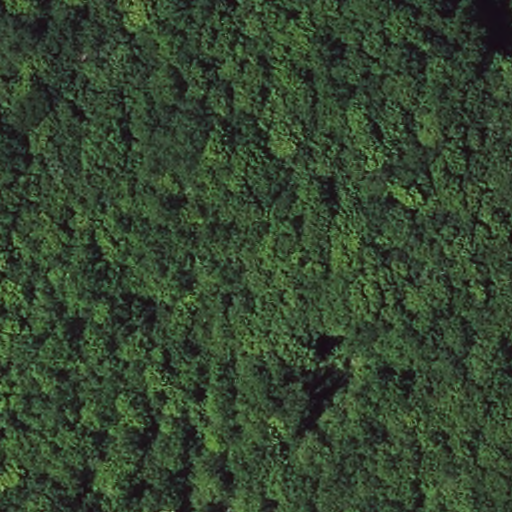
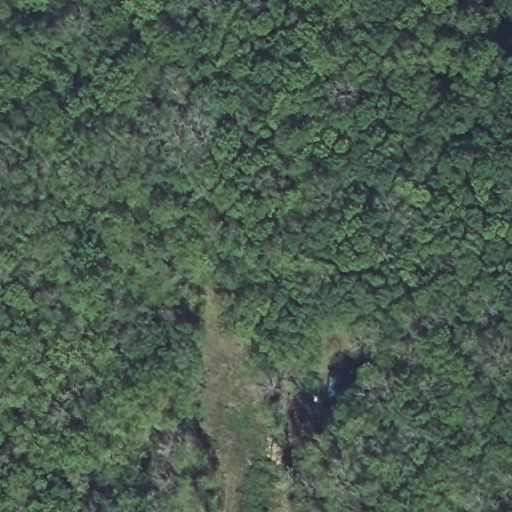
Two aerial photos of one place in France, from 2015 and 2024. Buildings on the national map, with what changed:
[]

